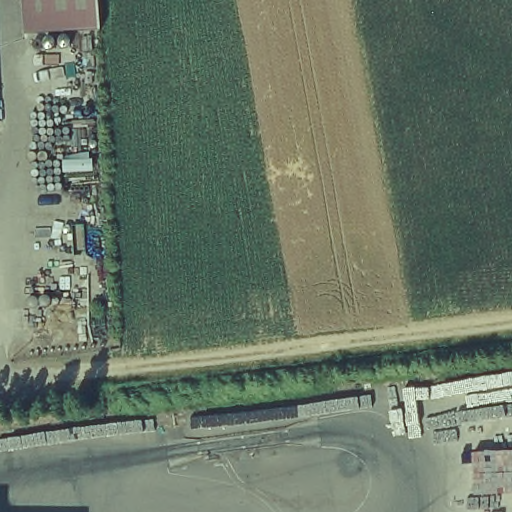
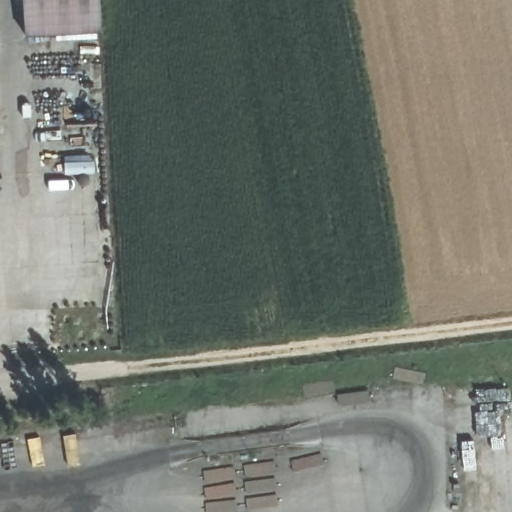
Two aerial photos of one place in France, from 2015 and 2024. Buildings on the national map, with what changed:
unchanged [(25,34),(23,0),(100,0),(102,28),(25,34)]

